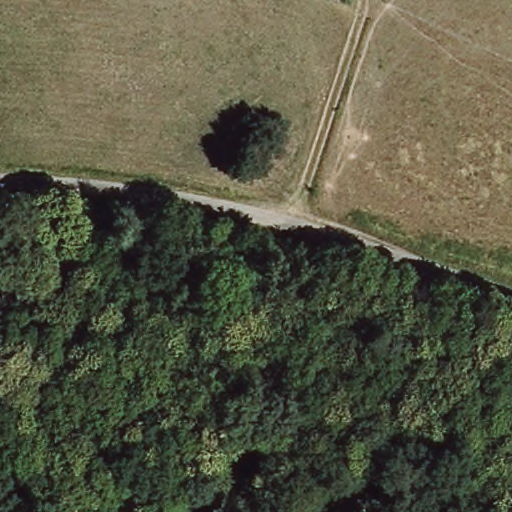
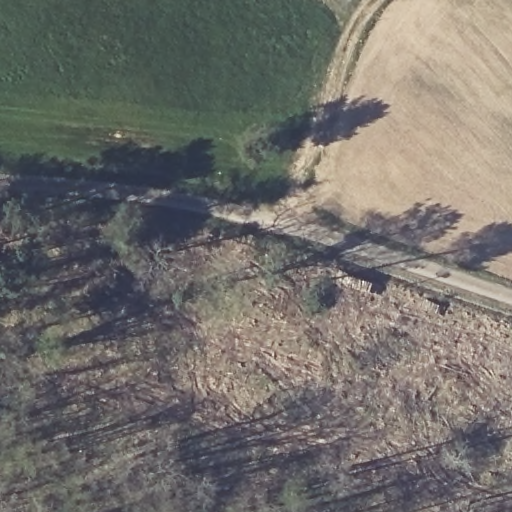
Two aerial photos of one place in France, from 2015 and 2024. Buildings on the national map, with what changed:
[]

